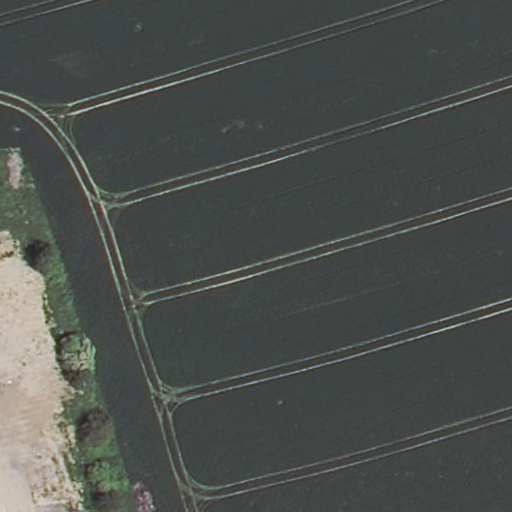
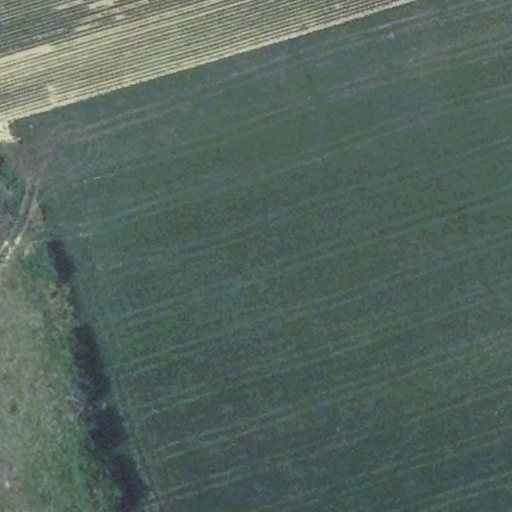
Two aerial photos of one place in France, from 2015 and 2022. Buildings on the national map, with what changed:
[]

